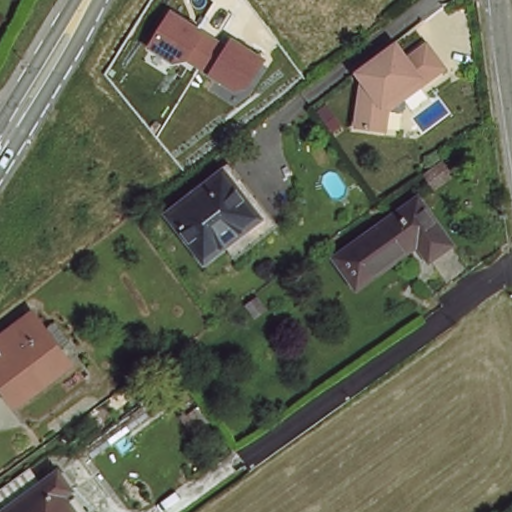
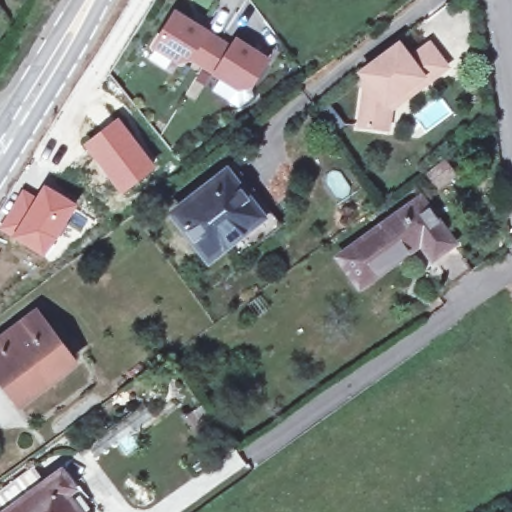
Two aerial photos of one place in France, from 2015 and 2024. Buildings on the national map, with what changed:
unchanged [(207,30),(232,45),(237,39),(272,58),(255,86),(240,90),(212,73),(193,60),(182,64),(155,46),(177,11),(207,30)]
unchanged [(442,55),(386,97),(383,117),(355,113),(359,81),(367,75),(357,60),(389,36),(395,32),(405,46),(425,32),(442,55)]
new [(118,116),(157,166),(121,194),(82,145),(118,116)]
unchanged [(177,202),(227,163),(265,211),(235,235),(215,251),(177,202)]
new [(36,194),(43,183),(78,203),(44,256),(0,230),(0,223),(22,186),(36,194)]
unchanged [(448,283),(417,240),(406,248),(355,283),(335,254),(416,197),(469,269),(448,283)]
unchanged [(0,344),(40,314),(73,357),(17,398),(0,375),(0,344)]
unchanged [(49,495),(65,483),(78,500),(73,505),(77,512),(0,512),(0,504),(36,478),(49,495)]

